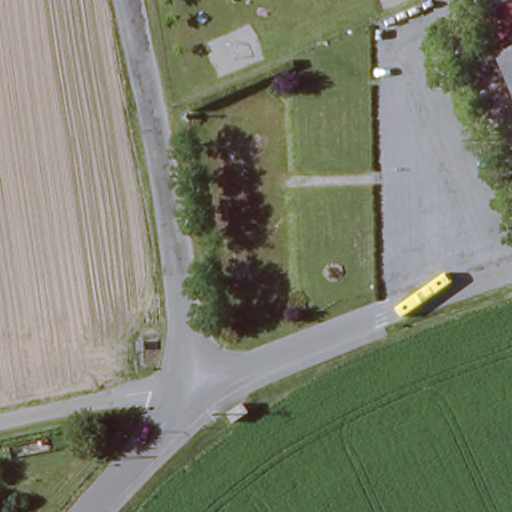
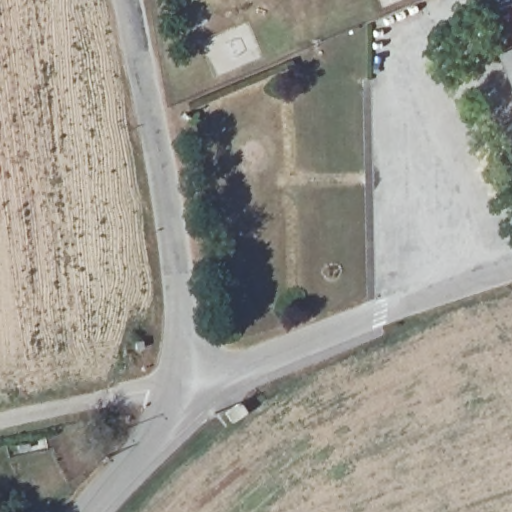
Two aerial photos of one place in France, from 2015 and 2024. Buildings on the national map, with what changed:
unchanged [(512,50),(500,54),(482,16),(512,4),(512,50)]
unchanged [(512,81),(500,54),(512,50),(512,81)]

